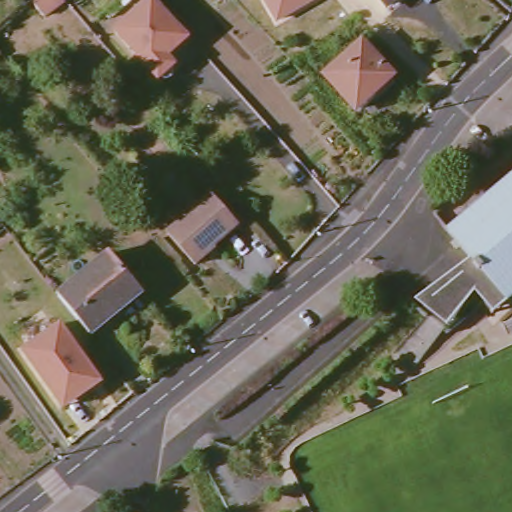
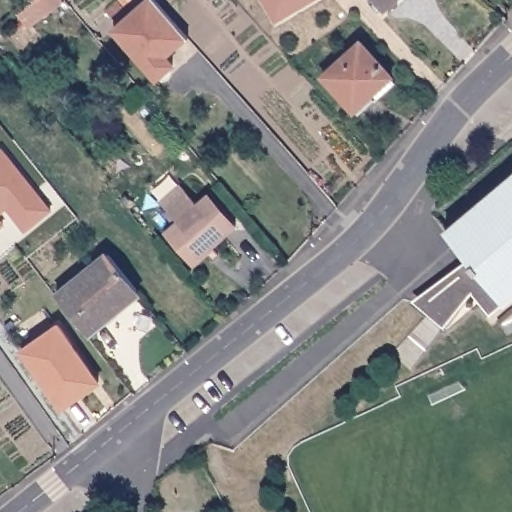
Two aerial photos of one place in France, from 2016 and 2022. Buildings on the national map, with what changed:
unchanged [(28,4),(33,0),(59,0),(40,16),(28,4)]
unchanged [(163,51),(174,63),(170,67),(157,77),(115,27),(126,17),(146,0),(159,0),(186,31),(163,51)]
unchanged [(273,17),(261,0),(305,0),(291,6),(273,17)]
unchanged [(378,0),(389,0),(382,6),(378,0)]
unchanged [(350,108),(320,74),(357,42),(387,76),(385,78),(390,84),(372,100),(367,94),(350,108)]
new [(5,148),(53,209),(28,229),(10,206),(0,213),(0,152),(5,148)]
unchanged [(446,232),(512,176),(512,305),(511,306),(497,317),(477,292),(449,328),(418,302),(465,253),(446,232)]
unchanged [(182,184),(198,202),(209,193),(236,224),(213,244),(216,246),(195,263),(166,231),(177,221),(173,217),(170,220),(164,212),(167,210),(161,202),(182,184)]
new [(0,227),(0,216),(5,223),(0,227)]
unchanged [(105,253),(137,292),(85,334),(55,295),(105,253)]
demolished [(394,279),(405,294),(376,320),(366,307),(394,279)]
unchanged [(62,403),(23,353),(58,325),(102,380),(82,395),(66,408),(62,403)]

